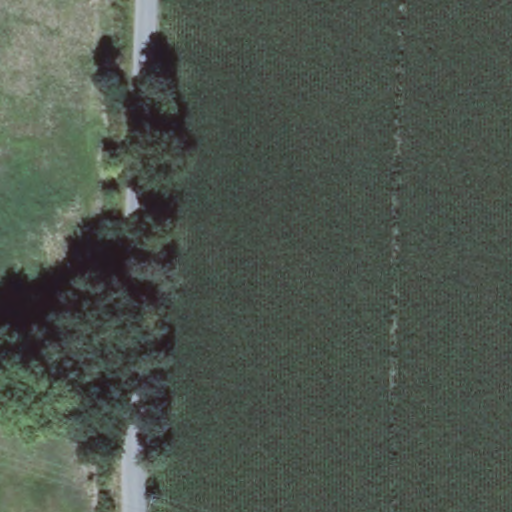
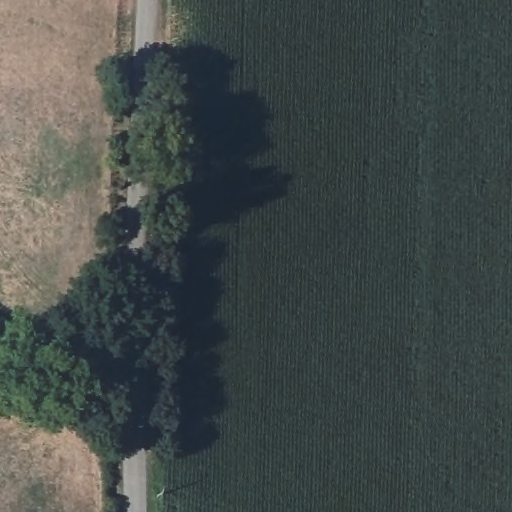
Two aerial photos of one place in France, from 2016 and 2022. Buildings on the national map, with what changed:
[]

